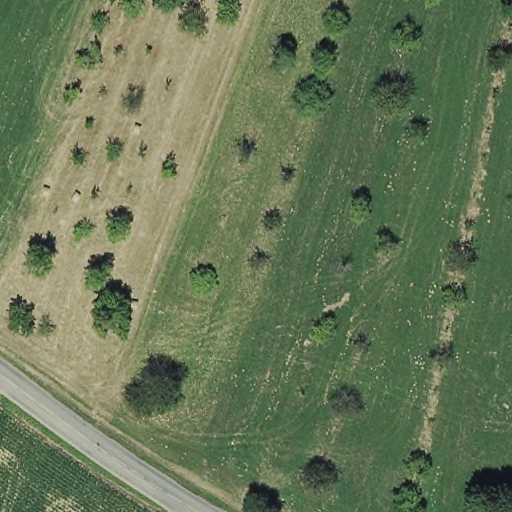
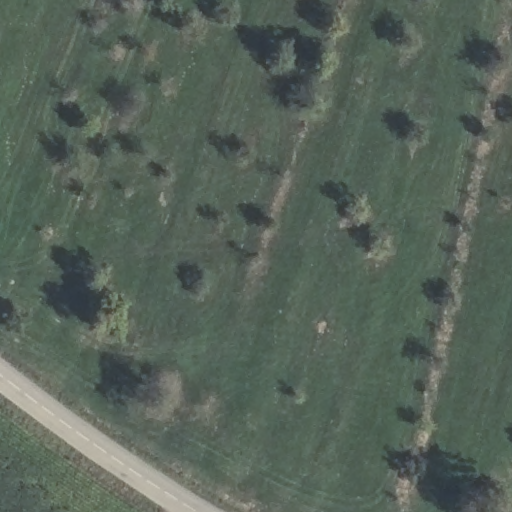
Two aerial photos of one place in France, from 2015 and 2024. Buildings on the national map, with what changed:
unchanged [(488,512),(482,511),(482,505),(489,506),(488,512)]

